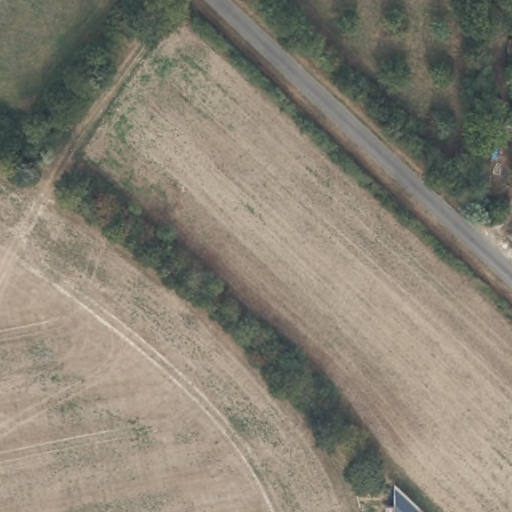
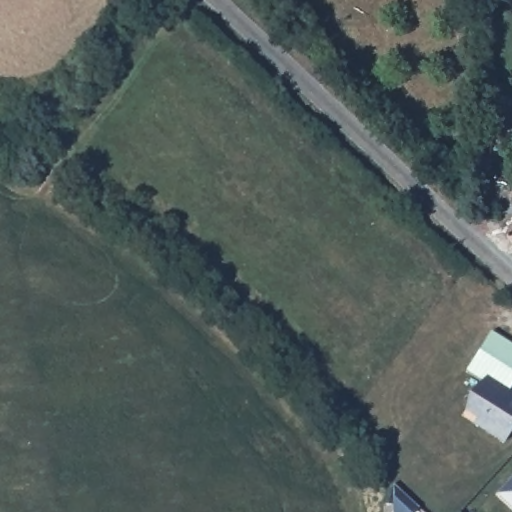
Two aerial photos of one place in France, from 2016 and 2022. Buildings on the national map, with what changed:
new [(476,419),(463,412),(480,381),(465,371),(490,331),(512,345),(512,387),(512,388),(512,431),(505,443),(472,425),(476,419)]
new [(512,476),(512,511),(495,494),(512,476)]
unchanged [(418,503),(409,512),(398,512),(395,508),(395,480),(418,503)]

